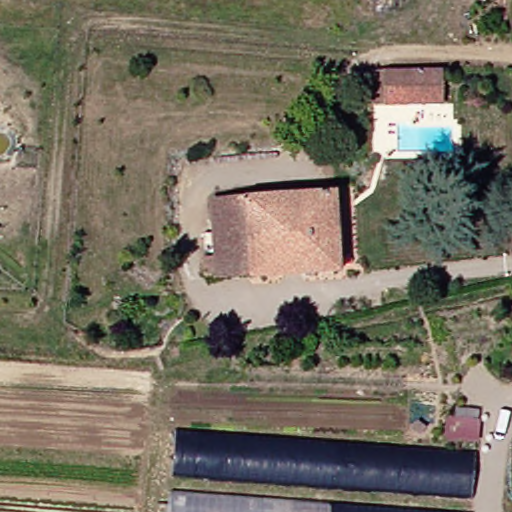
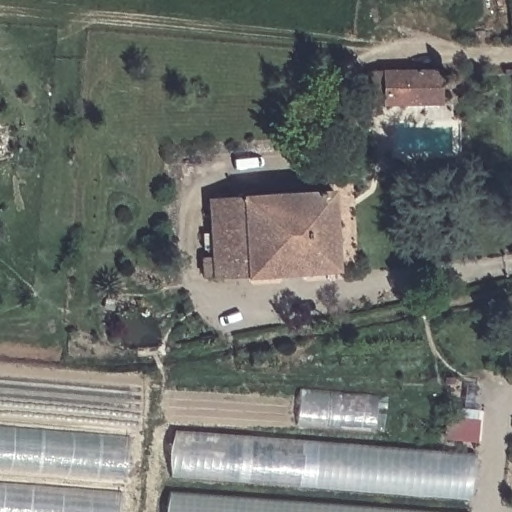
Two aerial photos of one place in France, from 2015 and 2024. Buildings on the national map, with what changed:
unchanged [(427,102),(359,101),(360,70),(427,71),(427,102)]
unchanged [(329,272),(240,277),(240,274),(201,273),(201,260),(204,260),(203,249),(208,249),(207,194),(326,191),(329,272)]
new [(373,434),(296,427),(298,388),(379,397),(373,434)]
new [(449,439),(455,407),(483,412),(480,443),(449,439)]
new [(0,468),(0,427),(130,438),(126,478),(0,468)]
unchanged [(462,496),(164,471),(164,432),(467,452),(462,496)]
new [(0,512),(0,484),(122,495),(120,512),(0,512)]
unchanged [(447,512),(160,512),(161,490),(447,512)]

